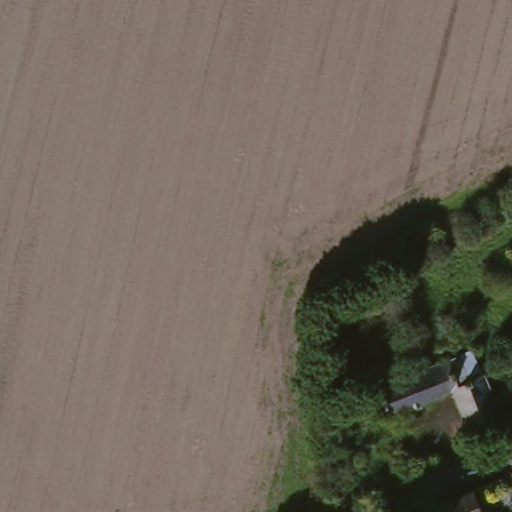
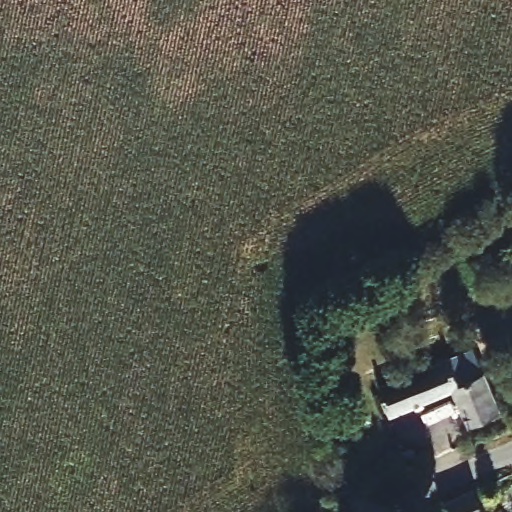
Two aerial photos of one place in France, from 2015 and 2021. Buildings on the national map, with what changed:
unchanged [(456,384),(394,412),(385,385),(452,357),(463,381),(456,384)]
unchanged [(489,371),(504,408),(471,422),(456,384),(463,381),(489,371)]
unchanged [(413,461),(414,480),(394,482),(392,484),(392,465),(413,461)]
unchanged [(478,512),(441,512),(438,506),(469,492),(478,512)]

